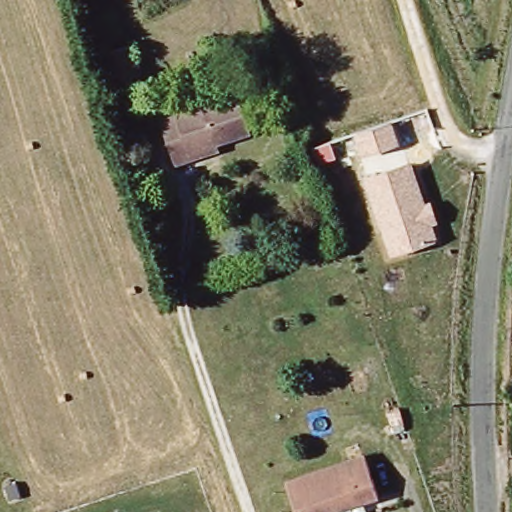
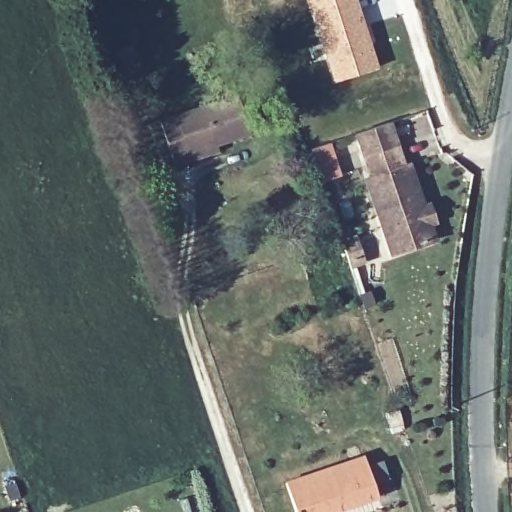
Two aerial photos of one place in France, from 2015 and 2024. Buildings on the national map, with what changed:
new [(372,47),(377,69),(332,84),(316,35),(305,0),(357,0),(372,47)]
unchanged [(142,72),(118,81),(107,53),(131,43),(142,72)]
unchanged [(157,122),(236,97),(247,134),(184,155),(186,162),(171,166),(157,122)]
unchanged [(361,157),(353,134),(392,122),(398,144),(361,157)]
new [(330,142),(341,175),(315,183),(305,150),(330,142)]
unchanged [(431,202),(438,224),(432,226),(437,242),(389,257),(362,178),(412,163),(425,203),(431,202)]
unchanged [(364,459),(375,497),(326,512),(292,512),(283,484),(364,459)]

